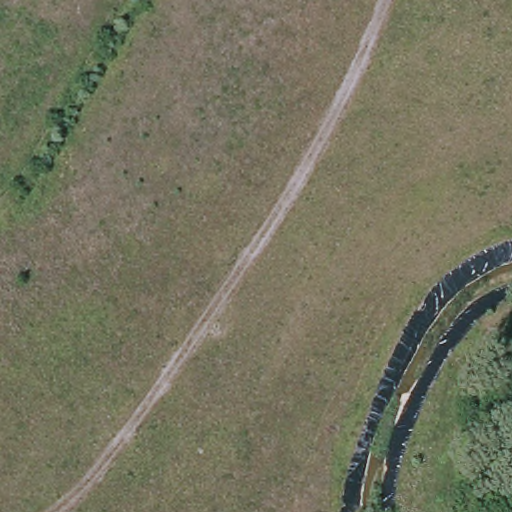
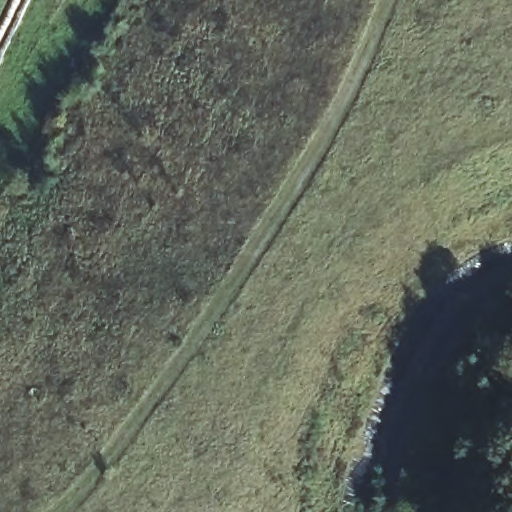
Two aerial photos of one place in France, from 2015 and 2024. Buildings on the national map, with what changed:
[]

